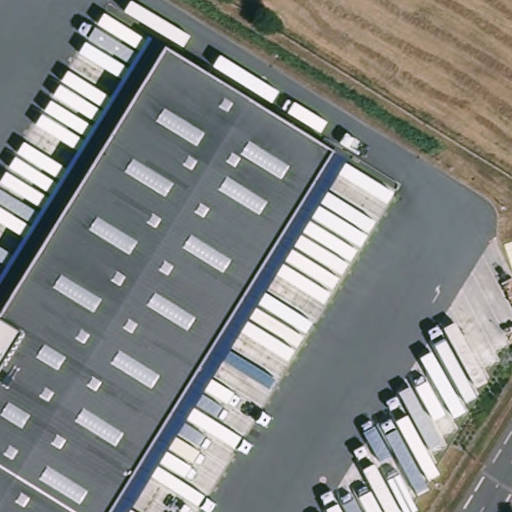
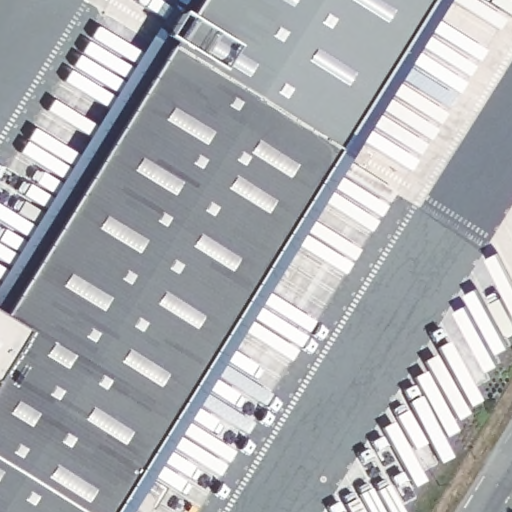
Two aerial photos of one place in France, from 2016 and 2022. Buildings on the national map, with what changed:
new [(197,0),(427,0),(332,153),(166,51),(197,0)]
unchanged [(168,51),(337,156),(346,162),(128,512),(0,512),(0,286),(149,42),(168,51)]

